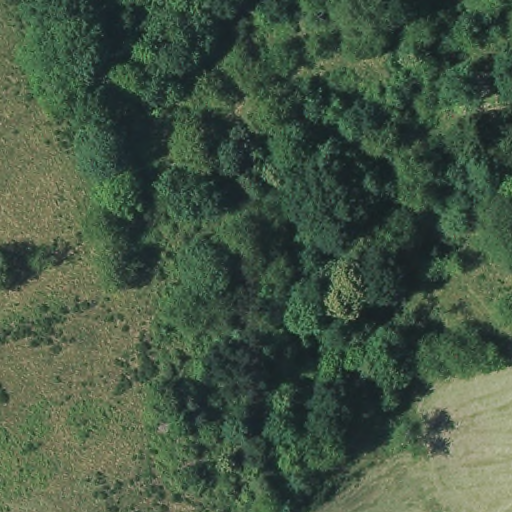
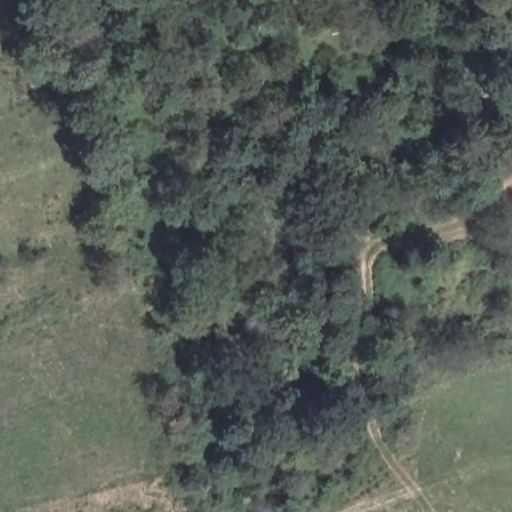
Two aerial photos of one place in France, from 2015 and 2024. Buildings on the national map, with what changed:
unchanged [(495,80),(497,95),(475,99),(473,86),(494,80),(495,80)]

